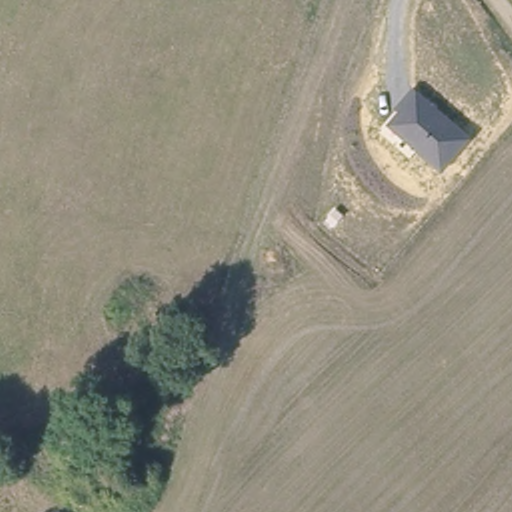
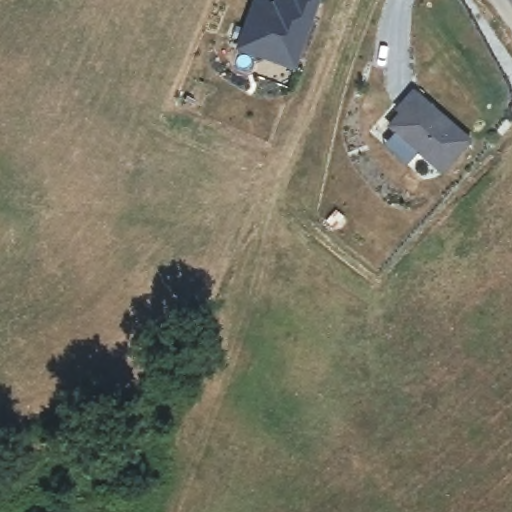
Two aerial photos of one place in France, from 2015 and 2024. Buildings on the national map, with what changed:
new [(296,70),(235,49),(254,0),(266,0),(273,2),(274,0),(321,0),(296,70)]
unchanged [(394,108),(413,87),(418,92),(473,138),(442,174),(387,126),(398,113),(394,108)]

